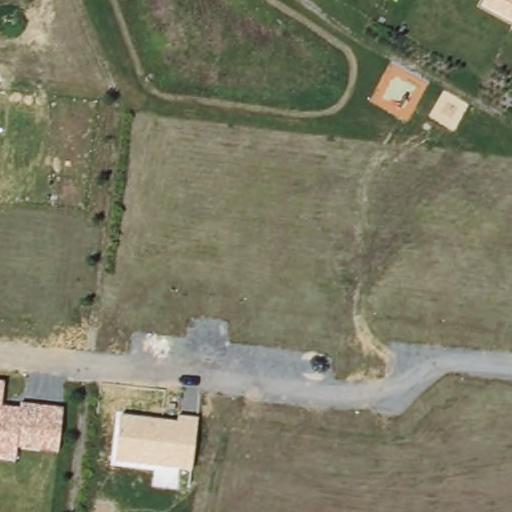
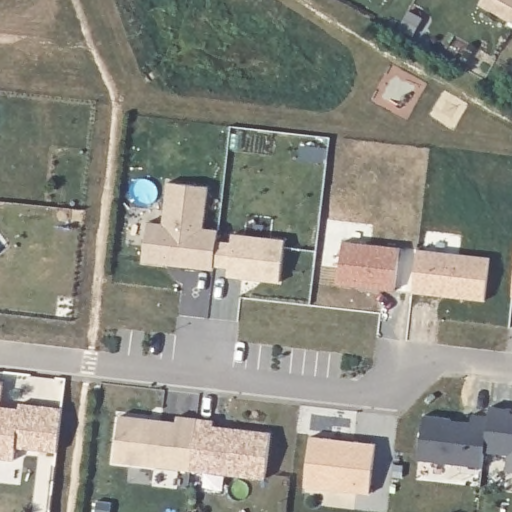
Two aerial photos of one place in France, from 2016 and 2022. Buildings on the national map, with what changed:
unchanged [(483,6),(486,0),(512,0),(512,20),(483,6)]
new [(144,262),(148,223),(164,224),(168,183),(208,187),(204,229),(219,230),(218,241),(214,266),(214,270),(180,266),(167,265),(144,262)]
new [(218,241),(233,243),(234,234),(284,240),(280,282),(229,276),(230,268),(214,266),(218,241)]
new [(402,247),(397,291),(339,284),(344,241),(402,247)]
new [(491,257),(486,301),(413,293),(418,250),(491,257)]
unchanged [(2,405),(21,407),(22,403),(64,406),(59,453),(18,448),(16,459),(0,458),(0,381),(4,381),(2,405)]
new [(491,406),(512,409),(512,471),(508,471),(509,454),(486,451),(489,416),(491,406)]
new [(452,416),(472,419),(472,414),(489,416),(486,451),(484,467),(419,459),(424,413),(452,416)]
unchanged [(179,420),(179,415),(199,417),(194,470),(115,462),(120,415),(179,420)]
new [(199,417),(216,418),(215,425),(272,432),(267,478),(194,470),(199,417)]
new [(333,439),(355,441),(376,444),(370,494),(305,486),(311,436),(333,439)]

